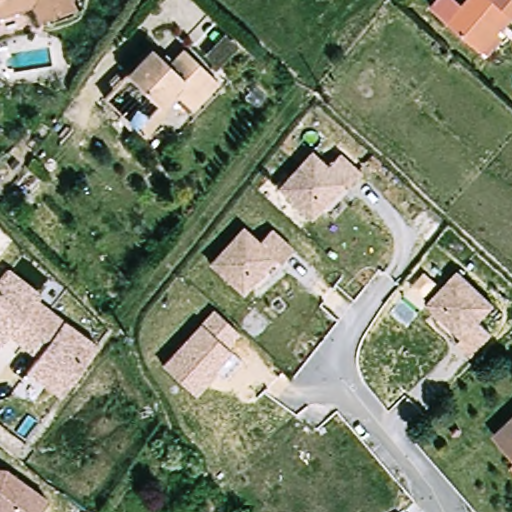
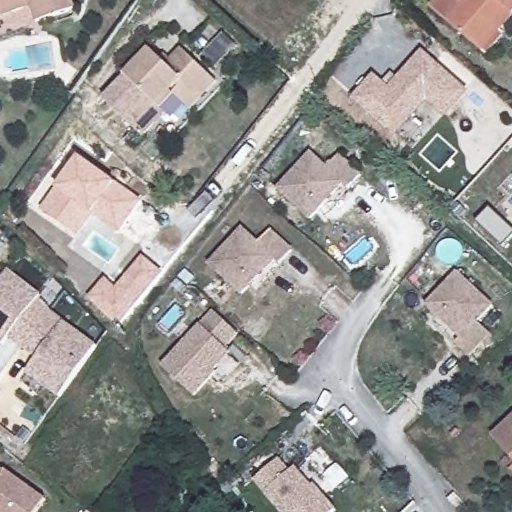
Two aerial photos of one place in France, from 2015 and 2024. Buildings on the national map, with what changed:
unchanged [(37,21),(32,5),(0,16),(0,0),(72,0),(75,9),(37,21)]
unchanged [(442,0),(459,0),(466,6),(472,0),(512,0),(512,23),(486,53),(482,49),(435,9),(442,0)]
unchanged [(172,63),(188,47),(223,81),(196,109),(181,94),(167,109),(163,105),(140,128),(109,98),(157,48),(172,63)]
new [(385,89),(394,79),(400,84),(424,56),(467,94),(448,116),(430,100),(398,136),(358,101),(376,80),(385,89)]
unchanged [(310,152),(326,167),(338,154),(360,175),(348,189),(342,184),(309,219),(276,189),(310,152)]
new [(120,234),(93,214),(79,235),(41,209),(57,188),(79,155),(117,183),(142,200),(120,234)]
unchanged [(245,229),(261,244),(273,232),(295,253),(282,265),(277,260),(244,296),(211,265),(245,229)]
new [(164,273),(119,327),(89,298),(107,279),(117,288),(143,256),(164,273)]
unchanged [(7,272),(40,298),(37,303),(50,312),(96,348),(59,398),(27,374),(37,359),(21,348),(10,339),(2,348),(0,346),(0,281),(7,272)]
unchanged [(496,307),(481,323),(494,334),(473,357),(460,344),(465,339),(429,306),(459,273),(496,307)]
unchanged [(239,334),(228,349),(232,353),(196,398),(161,366),(213,310),(239,334)]
unchanged [(512,418),(512,456),(493,436),(512,418)]
new [(282,463),(293,476),(299,471),(317,490),(319,489),(340,512),(283,512),(258,484),(282,463)]
unchanged [(8,469),(51,502),(43,512),(0,512),(0,469),(8,469)]

